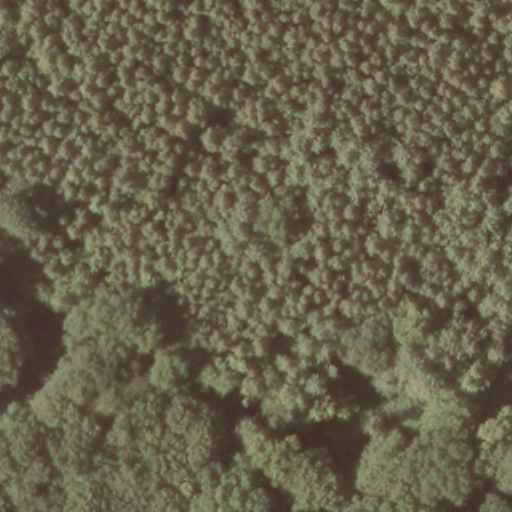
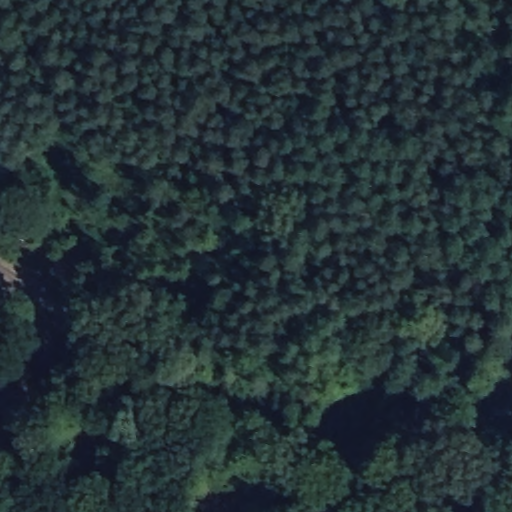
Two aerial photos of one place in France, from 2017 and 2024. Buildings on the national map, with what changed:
unchanged [(476,445),(460,456),(440,431),(482,393),(505,426),(476,445)]
unchanged [(505,426),(512,437),(512,494),(476,445),(505,426)]

